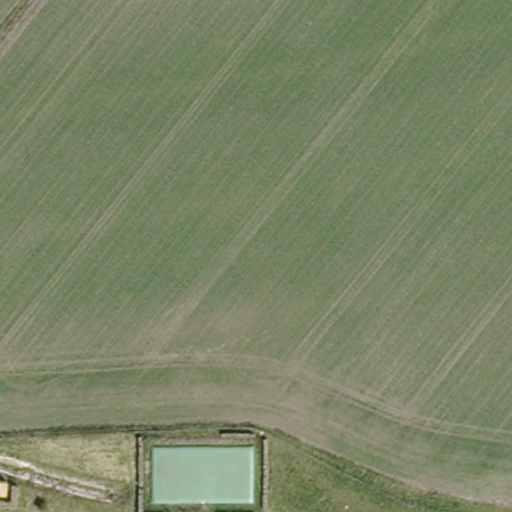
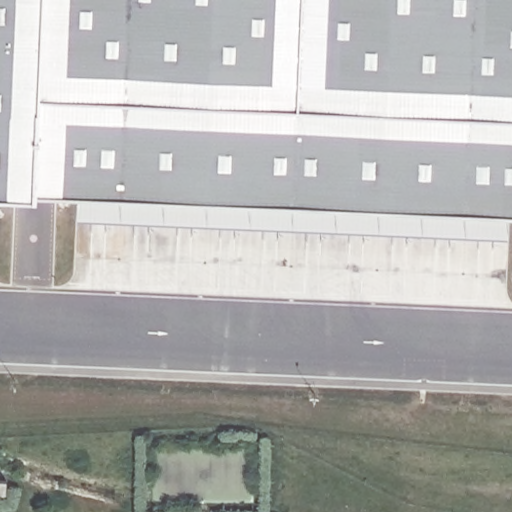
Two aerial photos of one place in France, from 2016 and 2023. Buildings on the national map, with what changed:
new [(512,0),(512,209),(78,192),(36,190),(0,189),(0,0),(512,0)]

